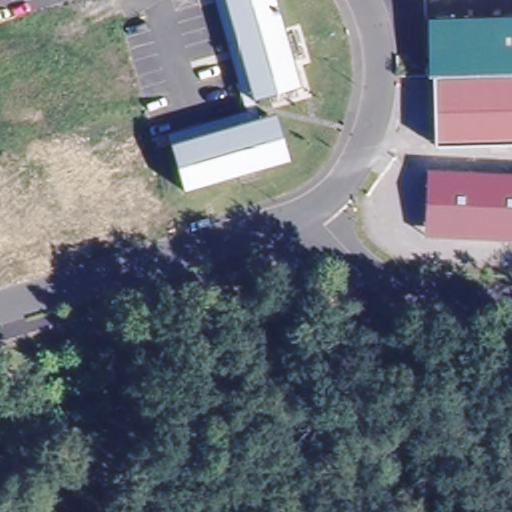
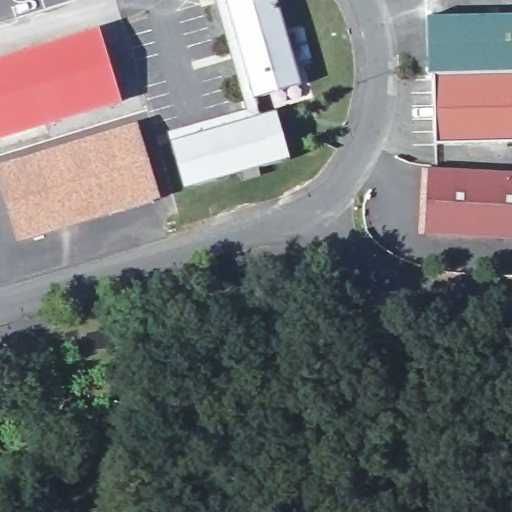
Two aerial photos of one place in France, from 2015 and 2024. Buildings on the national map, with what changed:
unchanged [(272,87),(241,95),(234,67),(216,5),(236,0),(266,0),(290,82),(272,87)]
unchanged [(458,71),(431,71),(427,71),(426,13),(512,12),(512,70),(501,70),(458,71)]
new [(99,30),(121,105),(0,140),(0,59),(99,30)]
unchanged [(431,71),(458,71),(501,70),(512,70),(512,140),(432,141),(431,71)]
unchanged [(182,192),(169,145),(259,120),(272,166),(182,192)]
new [(0,190),(0,166),(137,125),(160,200),(15,243),(0,190)]
unchanged [(467,208),(422,205),(425,165),(463,168),(512,171),(512,246),(465,243),(467,208)]
unchanged [(420,240),(422,205),(467,208),(465,243),(420,240)]
unchanged [(347,307),(308,296),(315,273),(354,285),(347,307)]

